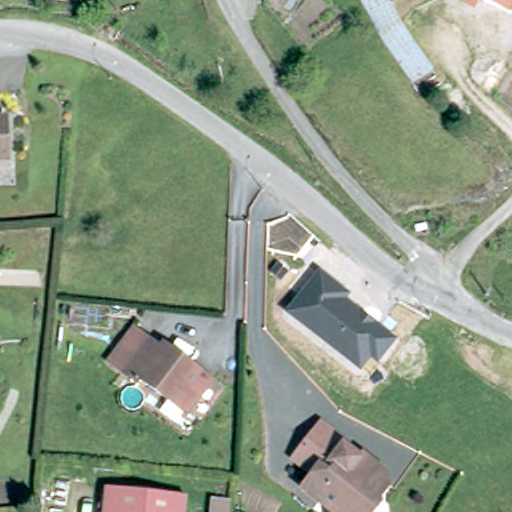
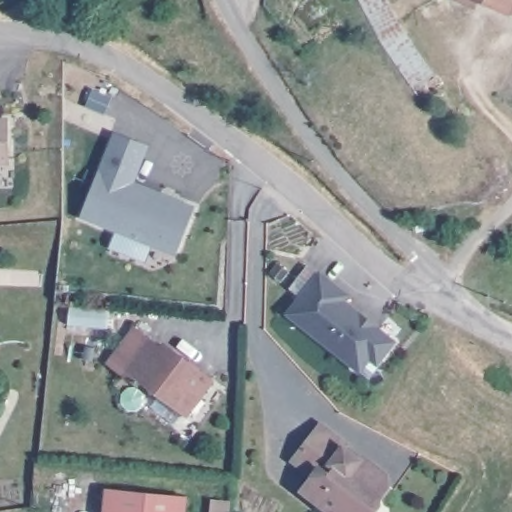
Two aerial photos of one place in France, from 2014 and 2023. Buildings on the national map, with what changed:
unchanged [(411,85),(358,0),(387,0),(431,67),(411,85)]
unchanged [(479,2),(475,10),(452,0),(475,0),(479,2)]
unchanged [(507,17),(474,0),(512,0),(512,7),(507,17)]
unchanged [(512,7),(512,17),(507,17),(512,7)]
unchanged [(0,125),(6,125),(7,164),(0,164),(0,125)]
new [(196,206),(176,256),(81,219),(112,133),(149,146),(136,182),(196,206)]
unchanged [(397,341),(377,366),(370,361),(360,373),(285,313),(318,271),(350,296),(346,302),(397,341)]
demolished [(387,315),(375,306),(380,297),(395,305),(387,315)]
unchanged [(171,356),(217,392),(192,425),(146,390),(143,394),(130,384),(116,373),(141,340),(155,351),(167,360),(171,356)]
unchanged [(312,479),(293,462),(321,427),(350,451),(346,456),(377,477),(380,472),(391,480),(393,495),(387,502),(384,501),(376,512),(326,512),(302,495),(312,479)]
unchanged [(227,512),(211,512),(213,492),(229,493),(227,512)]
unchanged [(107,512),(108,494),(188,500),(187,512),(107,512)]

